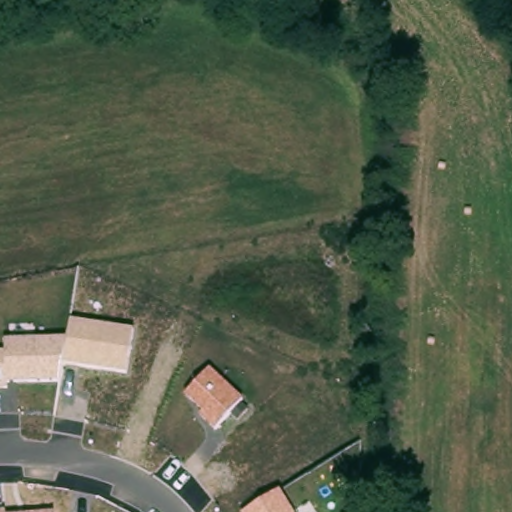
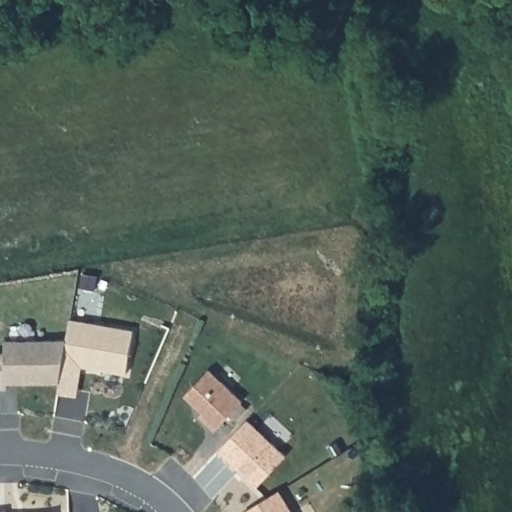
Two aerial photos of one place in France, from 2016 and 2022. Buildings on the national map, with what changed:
unchanged [(6,343),(66,342),(70,320),(136,331),(129,374),(63,363),(61,382),(8,382),(6,391),(0,391),(0,353),(6,353),(6,343)]
unchanged [(211,369),(244,400),(216,430),(199,415),(204,410),(186,394),(211,369)]
new [(248,418),(287,454),(257,485),(219,449),(248,418)]
unchanged [(294,512),(246,512),(281,491),(294,512)]
unchanged [(9,512),(0,512),(0,511),(9,511),(9,512)]

